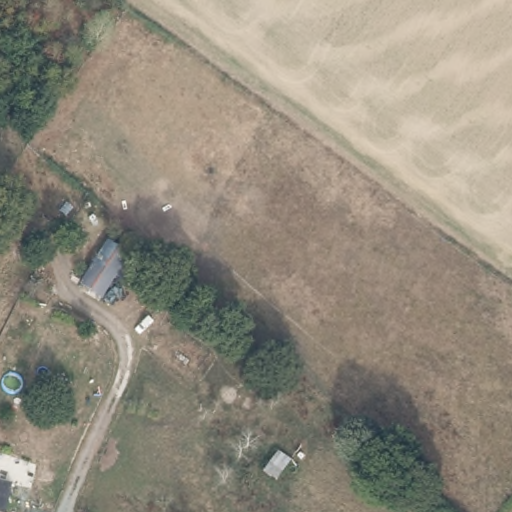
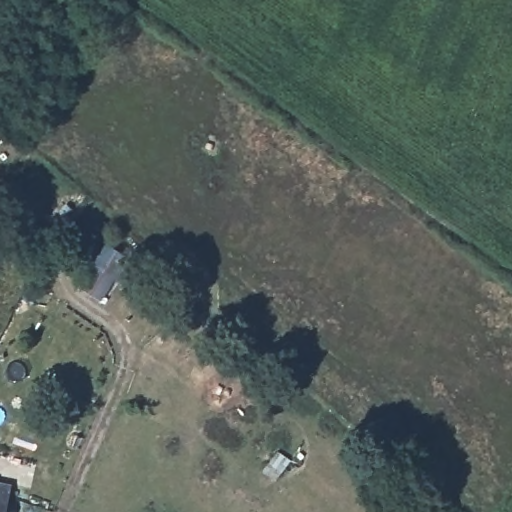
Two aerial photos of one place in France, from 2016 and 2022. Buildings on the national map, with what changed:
unchanged [(100,302),(67,280),(82,257),(90,264),(104,241),(130,258),(100,302)]
unchanged [(16,512),(0,512),(0,486),(22,492),(16,512)]

